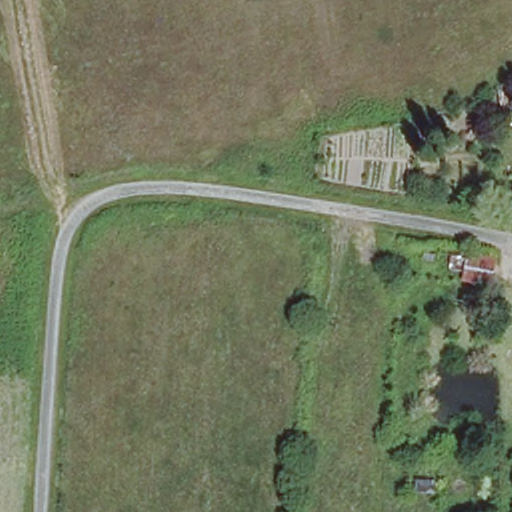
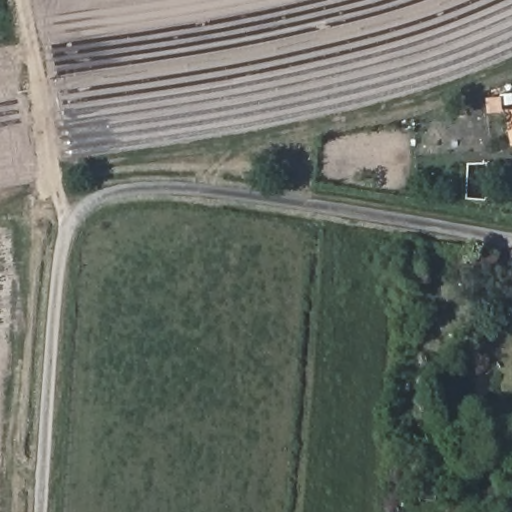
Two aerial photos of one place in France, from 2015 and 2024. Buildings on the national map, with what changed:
unchanged [(462,282),(467,254),(497,257),(493,287),(462,282)]

